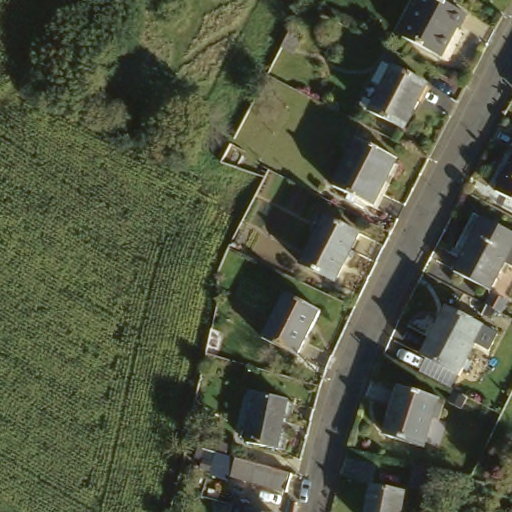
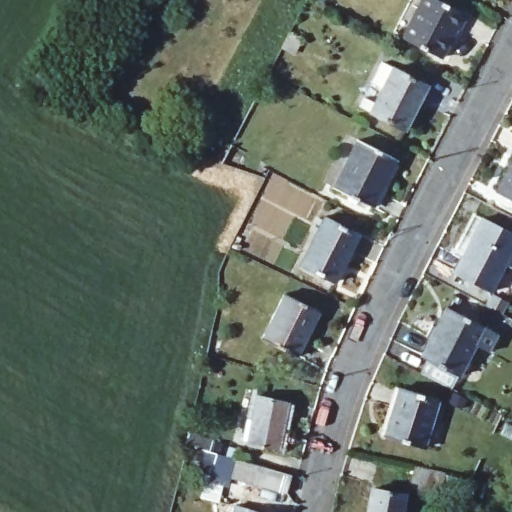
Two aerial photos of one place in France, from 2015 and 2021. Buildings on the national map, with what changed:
unchanged [(448,0),(470,11),(463,26),(461,25),(446,54),(407,36),(424,0),(448,0)]
unchanged [(417,123),(371,100),(375,91),(387,97),(395,83),(384,78),(395,57),(440,80),(417,123)]
unchanged [(364,136),(404,156),(380,203),(341,183),(364,136)]
unchanged [(512,195),(504,192),(512,176),(512,195)]
unchanged [(367,233),(344,283),(309,266),(332,217),(367,233)]
unchanged [(512,266),(499,290),(462,272),(491,218),(512,228),(512,266)]
unchanged [(328,312),(306,356),(270,337),(293,293),(328,312)]
unchanged [(497,333),(488,351),(475,344),(458,376),(421,356),(446,306),(484,326),(497,333)]
unchanged [(405,386),(445,394),(433,443),(393,434),(405,386)]
unchanged [(263,393),(294,399),(285,448),(253,441),(263,393)]
unchanged [(202,445),(200,454),(193,452),(196,443),(202,445)]
unchanged [(254,460),(300,474),(295,492),(239,477),(245,458),(254,460)]
unchanged [(417,468),(446,473),(442,493),(414,488),(417,468)]
unchanged [(375,488),(406,494),(403,512),(371,512),(375,488)]
unchanged [(239,505),(265,512),(237,512),(239,505)]

